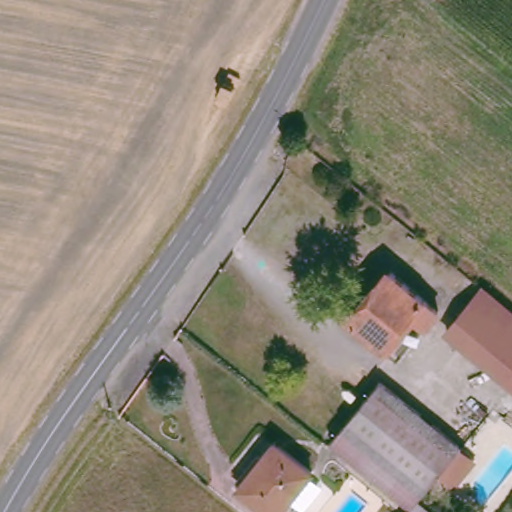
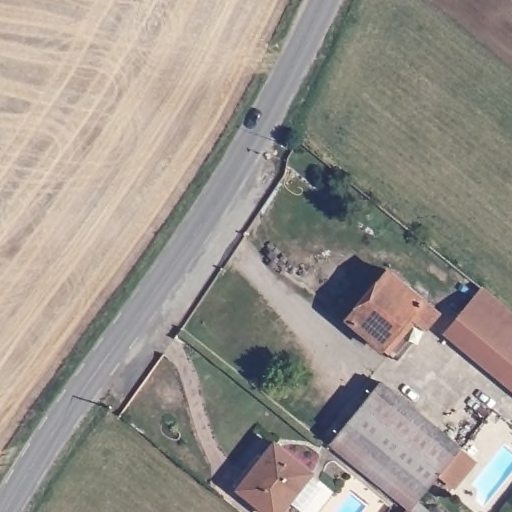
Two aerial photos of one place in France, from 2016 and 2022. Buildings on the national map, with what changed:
unchanged [(393,354),(346,314),(385,267),(434,306),(393,354)]
unchanged [(512,313),(512,389),(443,330),(479,286),(512,313)]
unchanged [(448,487),(434,473),(413,499),(409,504),(331,441),(377,382),(455,445),(470,459),(448,487)]
unchanged [(274,512),(239,482),(269,443),(305,473),(274,512)]
unchanged [(413,499),(428,512),(401,512),(404,509),(409,504),(413,499)]

